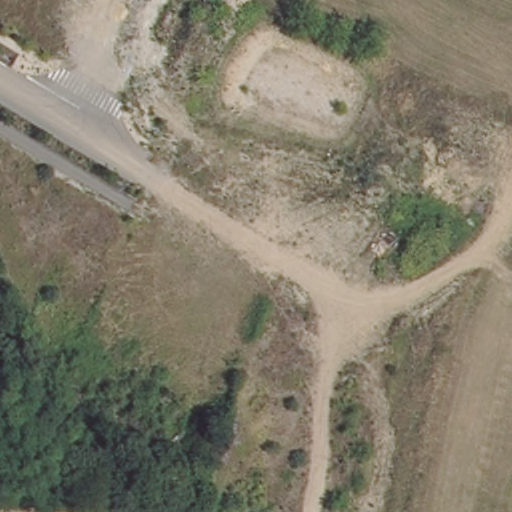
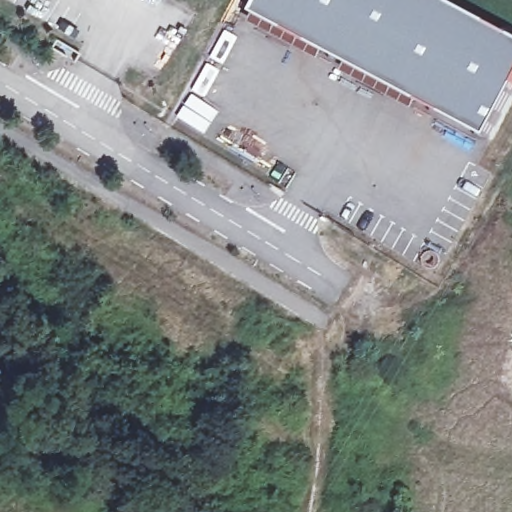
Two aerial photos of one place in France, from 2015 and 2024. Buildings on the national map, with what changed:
new [(512,38),(512,98),(489,139),(413,100),(412,110),(339,71),(339,61),(321,50),(319,60),(249,24),(255,15),(263,0),(441,0),(512,38)]

